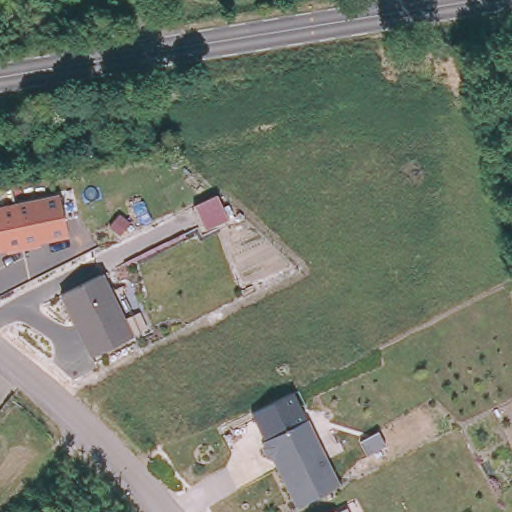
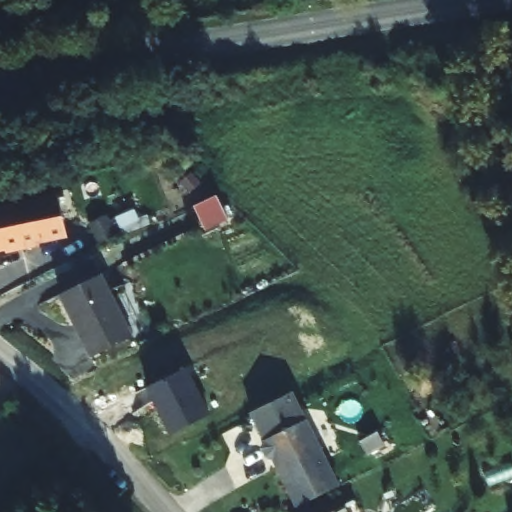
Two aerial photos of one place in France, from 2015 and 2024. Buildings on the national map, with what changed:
unchanged [(60,193),(69,238),(0,252),(0,205),(60,193)]
unchanged [(217,195),(228,218),(205,230),(194,206),(217,195)]
unchanged [(101,272),(132,337),(90,358),(60,294),(101,272)]
new [(210,415),(172,434),(148,388),(186,369),(210,415)]
unchanged [(252,412),(295,390),(308,419),(266,437),(263,439),(252,412)]
unchanged [(308,419),(340,488),(294,508),(274,461),(264,455),(260,448),(263,439),(308,419)]
unchanged [(334,510),(335,512),(330,512),(334,510)]

